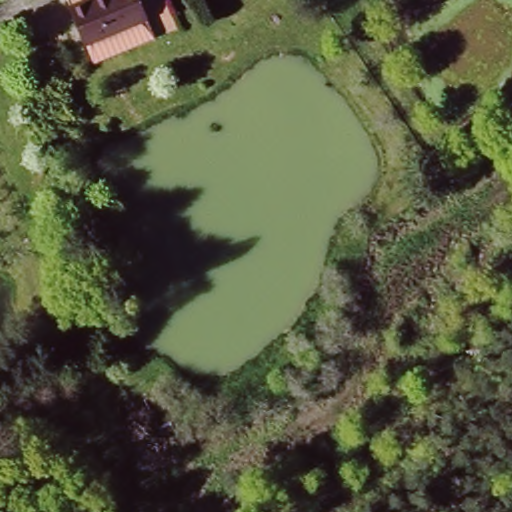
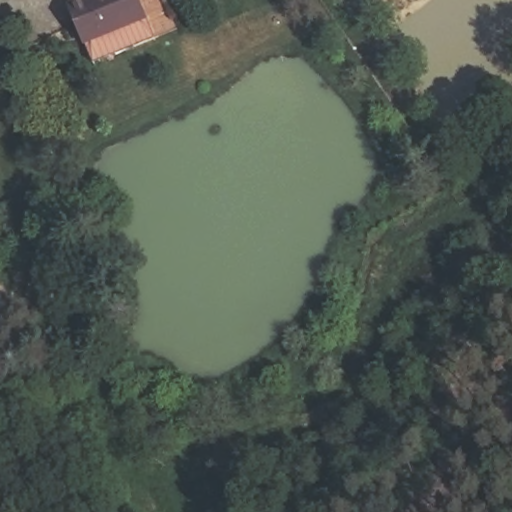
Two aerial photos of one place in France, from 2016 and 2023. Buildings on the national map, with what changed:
unchanged [(86,0),(139,0),(148,20),(91,46),(72,6),(86,0)]

